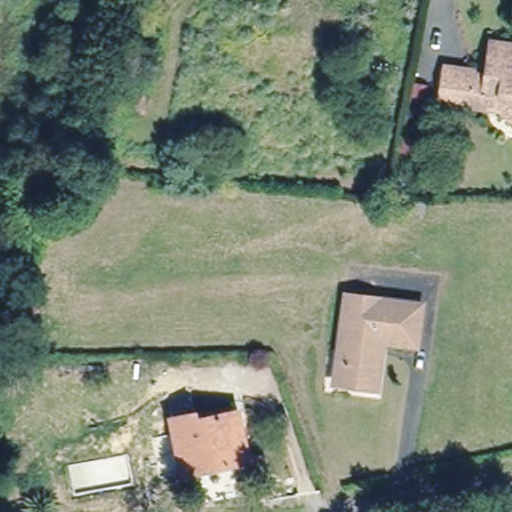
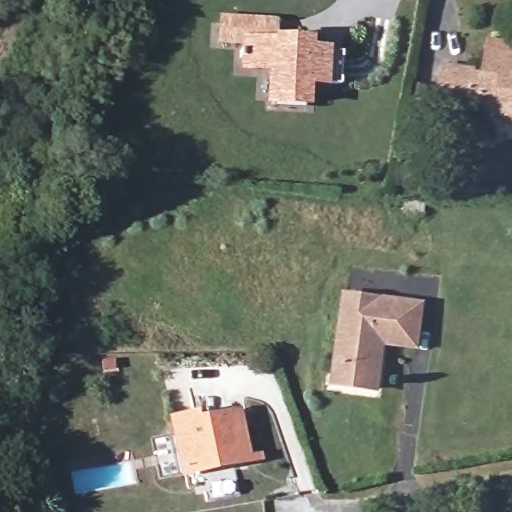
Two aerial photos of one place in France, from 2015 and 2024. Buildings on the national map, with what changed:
new [(271,72),(239,70),(239,61),(236,61),(237,52),(240,52),(240,44),(217,42),(218,22),(272,25),(272,21),(274,22),(273,45),(305,47),(305,44),(306,45),(306,52),(338,54),(337,86),(305,85),(304,97),(303,107),(270,105),(270,96),(271,72)]
unchanged [(446,98),(451,65),(477,69),(477,72),(491,75),(497,40),(512,43),(512,116),(506,110),(472,103),(446,98)]
unchanged [(425,302),(419,344),(387,340),(380,386),(351,385),(350,385),(367,297),(425,302)]
unchanged [(248,460),(186,475),(173,420),(194,415),(224,408),(225,416),(237,413),(248,460)]

